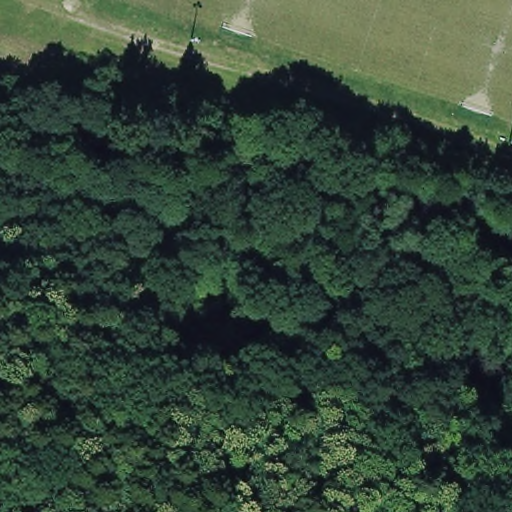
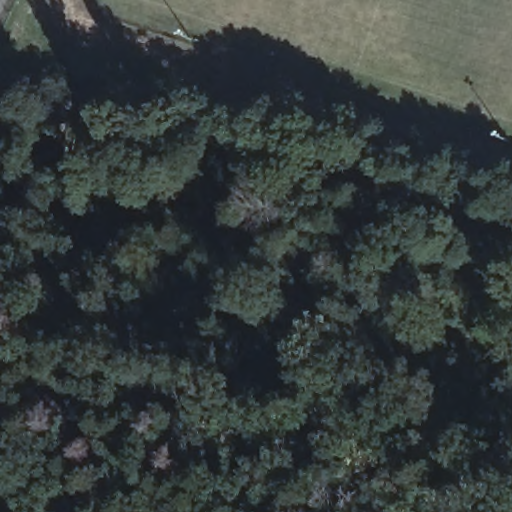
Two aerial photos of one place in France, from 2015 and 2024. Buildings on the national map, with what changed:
[]

